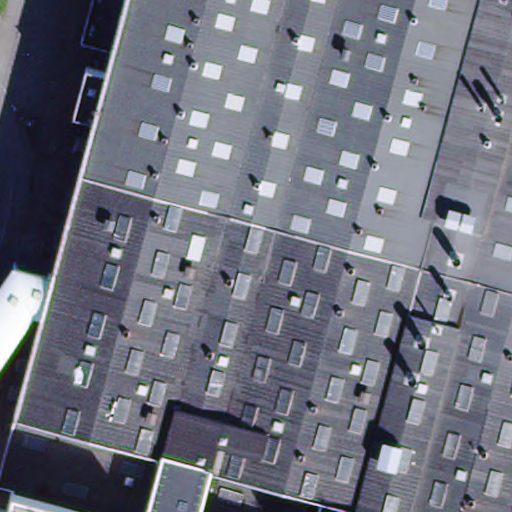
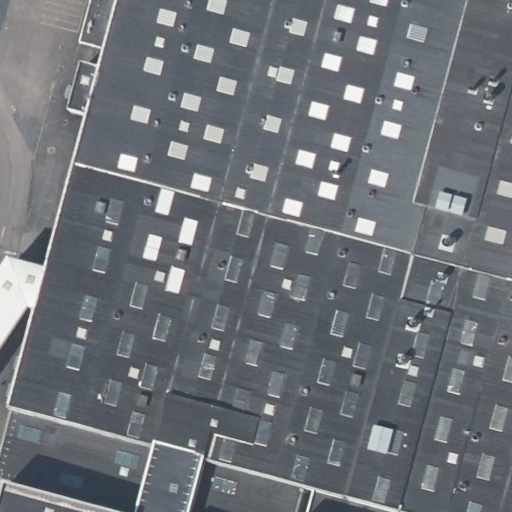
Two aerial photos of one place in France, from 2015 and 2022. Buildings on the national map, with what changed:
unchanged [(12,488),(0,485),(0,474),(41,316),(55,262),(94,117),(74,111),(87,64),(107,69),(125,0),(512,0),(512,512),(6,512),(12,488)]
unchanged [(55,262),(41,316),(36,315),(0,369),(0,284),(20,254),(55,262)]

